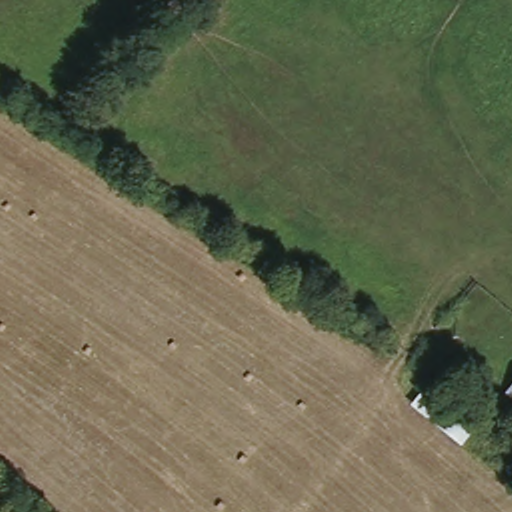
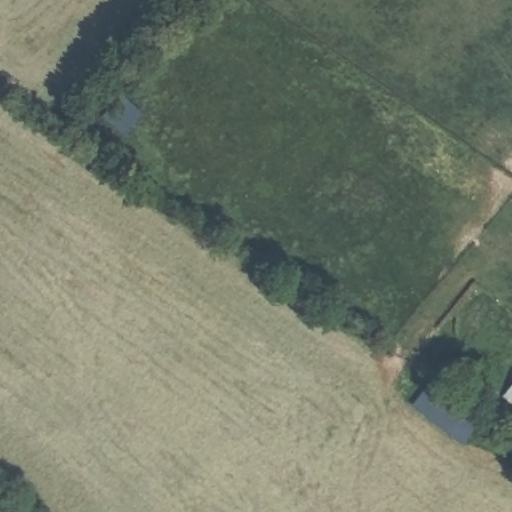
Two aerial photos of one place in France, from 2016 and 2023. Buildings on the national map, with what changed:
unchanged [(429,384),(482,420),(462,447),(410,405),(429,384)]
unchanged [(505,405),(512,395),(512,410),(505,405)]

